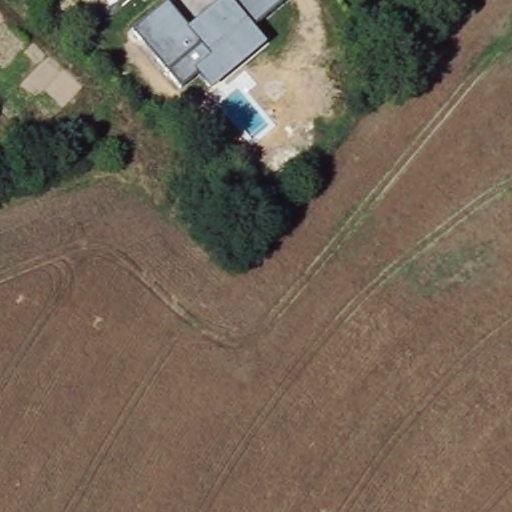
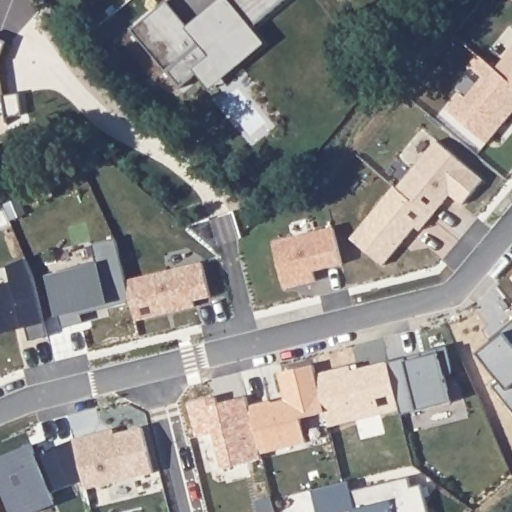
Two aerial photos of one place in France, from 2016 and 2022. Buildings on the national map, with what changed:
unchanged [(188,26),(221,0),(283,0),(253,27),(266,43),(210,90),(197,74),(182,88),(132,30),(168,2),(188,26)]
new [(512,29),(512,83),(483,58),(509,26),(512,29)]
new [(0,58),(0,39),(6,41),(0,58)]
new [(461,93),(466,97),(484,77),(469,65),(479,55),(512,83),(512,114),(487,143),(447,110),(461,93)]
new [(0,94),(0,79),(2,93),(0,94)]
new [(437,141),(484,180),(463,205),(451,194),(431,217),(397,189),(437,141)]
new [(397,189),(431,217),(420,230),(416,226),(384,265),(351,238),(396,186),(397,189)]
new [(334,227),(343,264),(314,271),(316,281),(284,288),(273,242),(334,227)]
new [(126,281),(131,300),(83,312),(84,321),(62,326),(59,316),(48,274),(96,263),(93,245),(116,239),(126,281)]
new [(136,321),(126,281),(203,262),(211,296),(194,300),(195,306),(173,312),(165,314),(136,321)]
new [(404,357),(406,360),(423,356),(421,352),(446,346),(452,372),(444,374),(451,401),(419,408),(402,413),(390,360),(404,357)]
new [(285,398),(279,373),(314,365),(326,412),(301,418),(307,442),(262,454),(249,406),(271,401),(285,398)]
new [(218,396),(219,402),(248,396),(249,406),(262,454),(263,459),(223,468),(215,432),(195,436),(189,403),(218,396)]
new [(114,429),(115,434),(143,427),(154,472),(86,489),(84,481),(74,439),(93,434),(114,429)]
new [(37,457),(55,450),(54,447),(74,439),(84,481),(69,485),(51,492),(54,498),(35,506),(38,510),(34,512),(11,512),(0,485),(0,457),(31,444),(37,457)]

